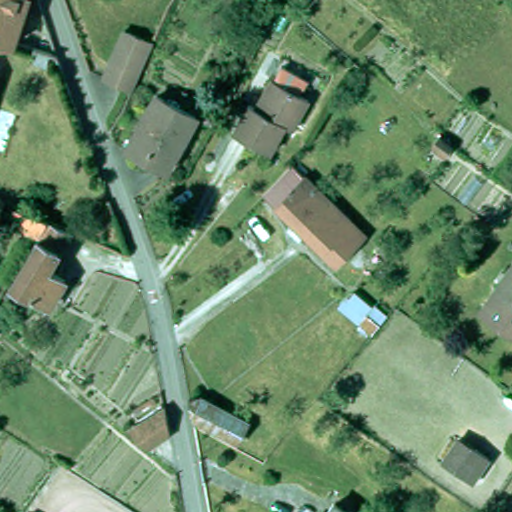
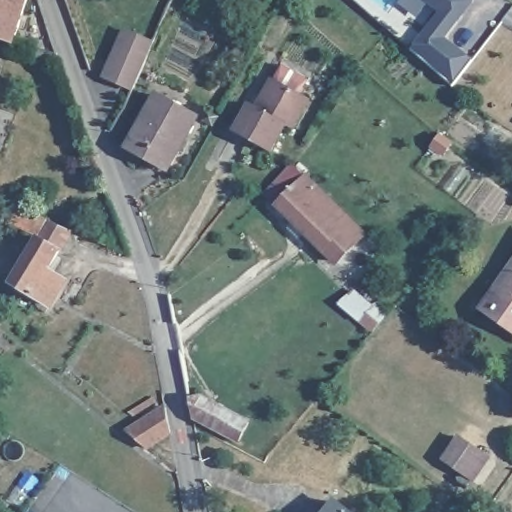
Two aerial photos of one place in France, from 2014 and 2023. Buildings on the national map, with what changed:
unchanged [(11,46),(0,43),(0,0),(26,0),(12,45),(11,46)]
new [(474,58),(453,84),(409,50),(439,12),(424,0),(474,0),(476,2),(448,38),(474,58)]
unchanged [(36,62),(39,52),(51,32),(60,59),(56,57),(52,67),(36,62)]
unchanged [(145,78),(137,95),(109,82),(129,36),(159,49),(145,78)]
unchanged [(258,110),(272,82),(311,102),(297,127),(290,124),(274,155),(236,136),(251,107),(258,110)]
unchanged [(159,99),(199,122),(169,174),(130,152),(159,99)]
unchanged [(442,139),(455,148),(448,157),(436,149),(442,139)]
unchanged [(297,235),(304,227),(273,200),(300,171),(366,232),(374,239),(347,268),(339,260),(315,238),(308,246),(297,235)]
unchanged [(24,293),(50,246),(21,233),(28,215),(60,229),(65,231),(74,235),(75,235),(52,276),(70,285),(52,317),(45,313),(41,321),(13,306),(20,298),(24,293)]
unchanged [(484,309),(486,306),(512,268),(512,330),(484,309)]
unchanged [(0,334),(0,333),(1,333),(0,334)]
unchanged [(194,403),(205,401),(252,425),(242,445),(197,421),(194,403)]
unchanged [(130,437),(163,407),(168,432),(147,450),(130,437)]
unchanged [(476,487),(457,474),(448,467),(466,442),(475,449),(494,462),(476,487)]
unchanged [(330,507),(336,512),(327,512),(330,507)]

